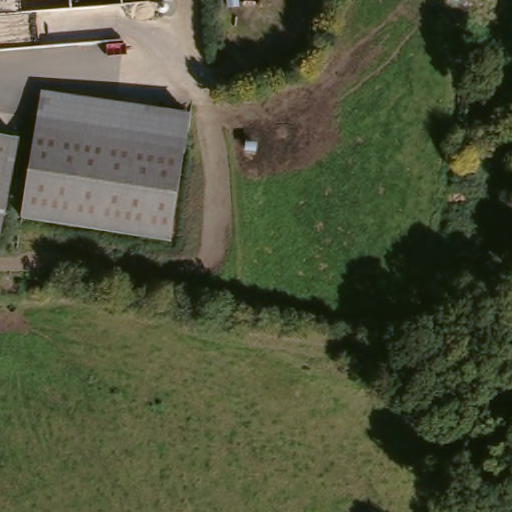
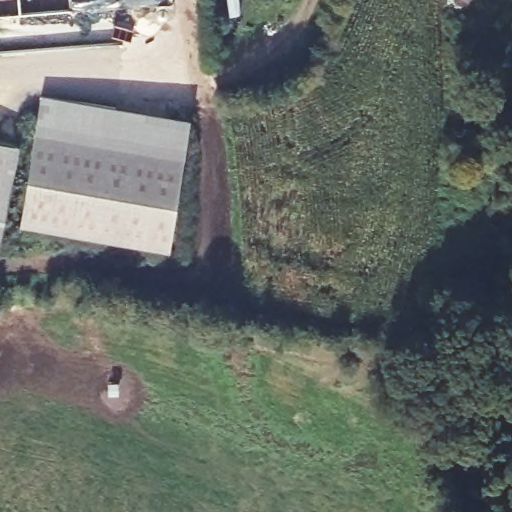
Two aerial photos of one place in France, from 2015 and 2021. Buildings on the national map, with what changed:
unchanged [(19,224),(39,93),(182,117),(167,249),(19,224)]
unchanged [(0,227),(0,140),(16,143),(0,227)]

